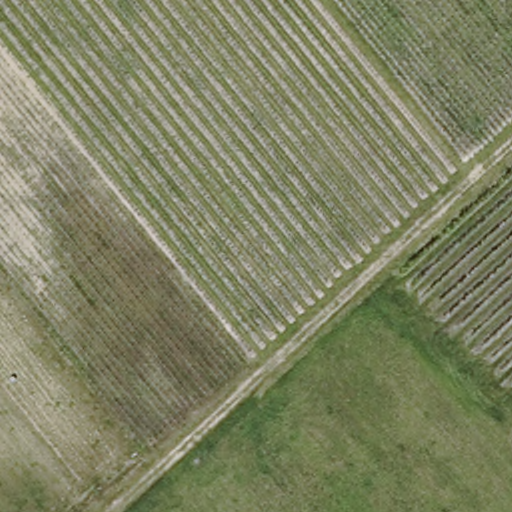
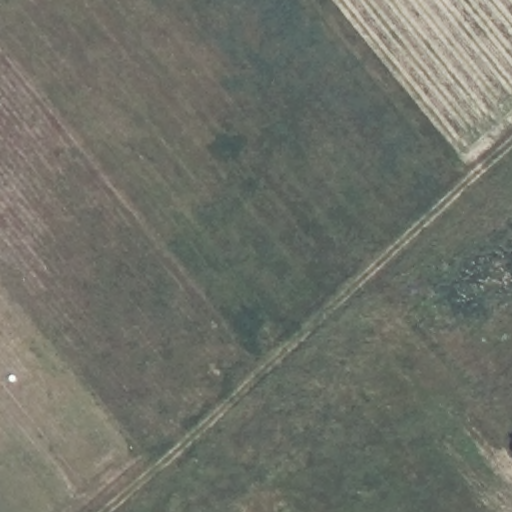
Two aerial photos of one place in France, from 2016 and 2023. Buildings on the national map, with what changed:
[]

